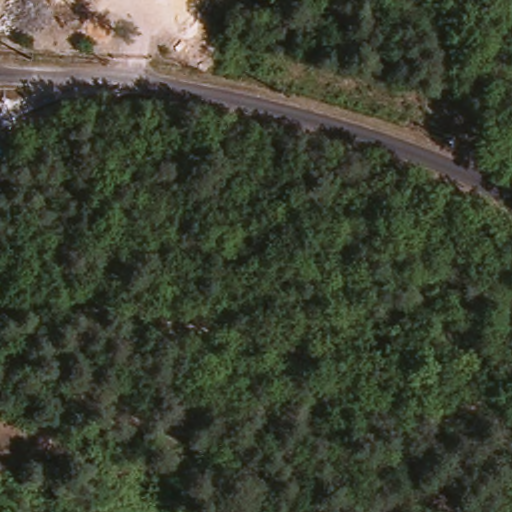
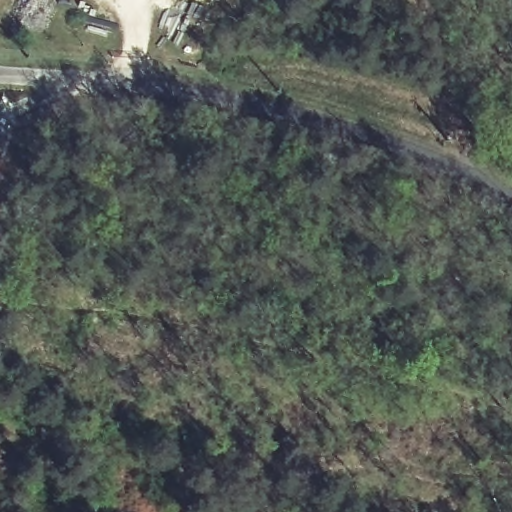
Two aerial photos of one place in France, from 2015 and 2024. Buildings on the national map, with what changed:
unchanged [(0,163),(1,164),(0,166),(0,163)]

